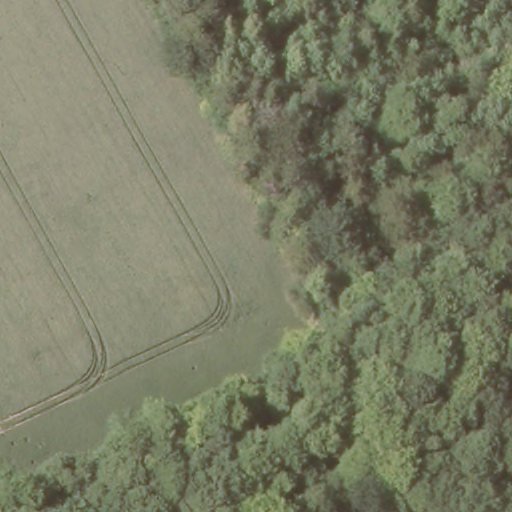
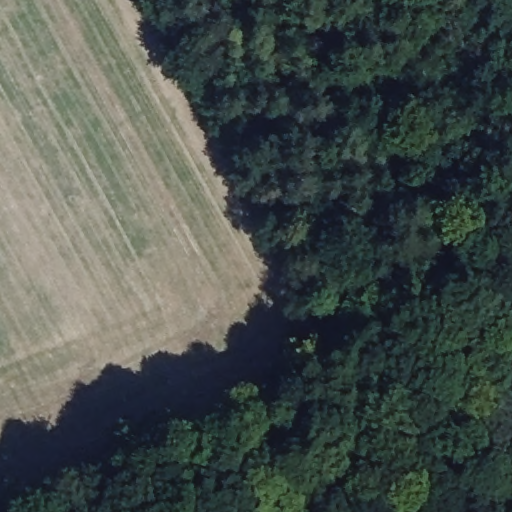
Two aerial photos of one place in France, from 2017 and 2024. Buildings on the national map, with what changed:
unchanged [(364,232),(373,247),(363,253),(354,237),(364,232)]

